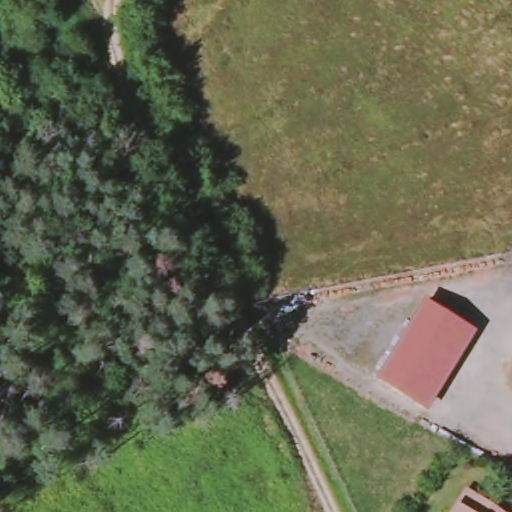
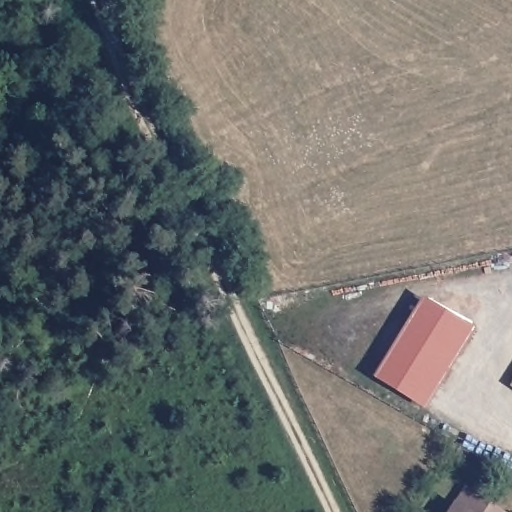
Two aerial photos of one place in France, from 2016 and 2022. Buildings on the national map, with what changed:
unchanged [(409,324),(421,306),(463,333),(451,351),(409,324)]
unchanged [(409,324),(451,351),(417,406),(376,379),(409,324)]
unchanged [(465,492),(496,512),(451,512),(465,492)]

